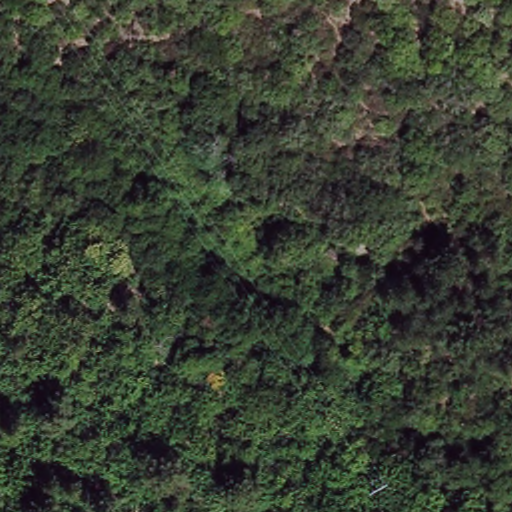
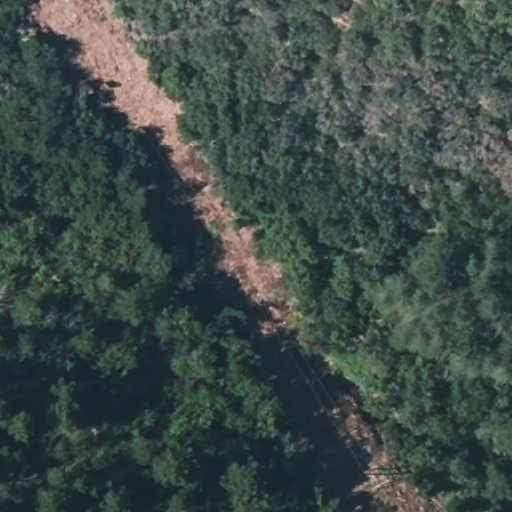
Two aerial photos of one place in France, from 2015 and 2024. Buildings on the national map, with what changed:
unchanged [(380,206),(375,218),(356,207),(364,196),(380,206)]
unchanged [(371,243),(331,217),(339,207),(379,230),(371,243)]

